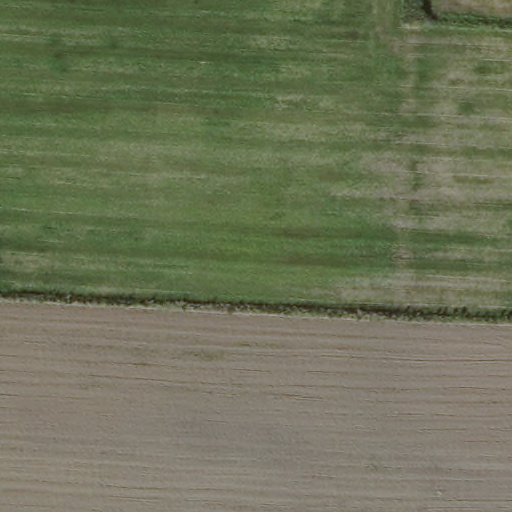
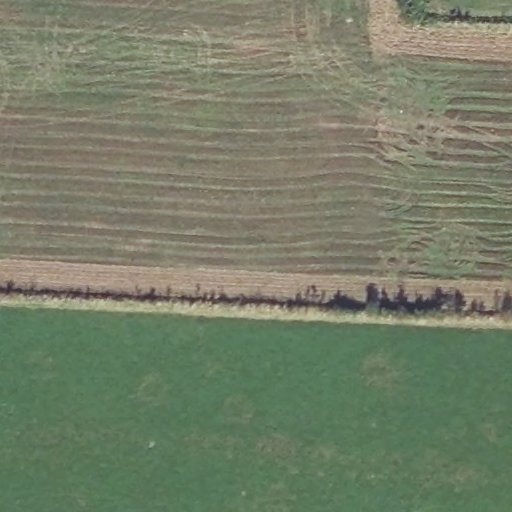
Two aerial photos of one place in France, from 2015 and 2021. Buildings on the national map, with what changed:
[]

